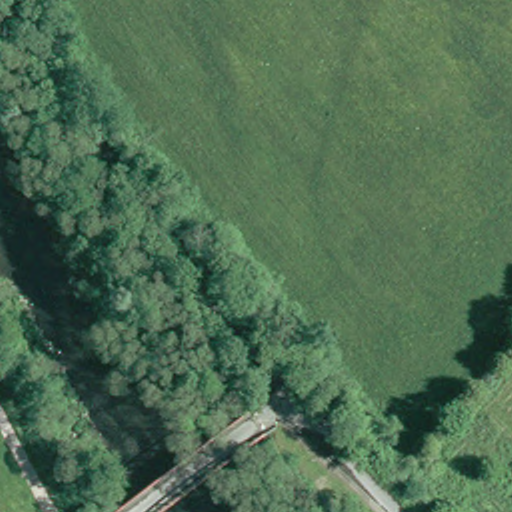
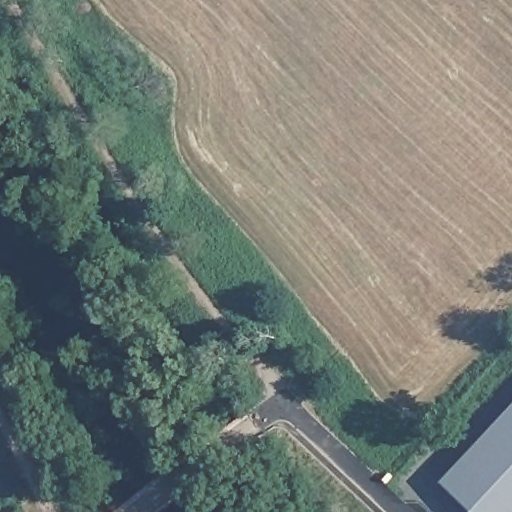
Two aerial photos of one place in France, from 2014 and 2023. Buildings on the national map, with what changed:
new [(512,409),(512,512),(478,512),(445,481),(512,409)]

